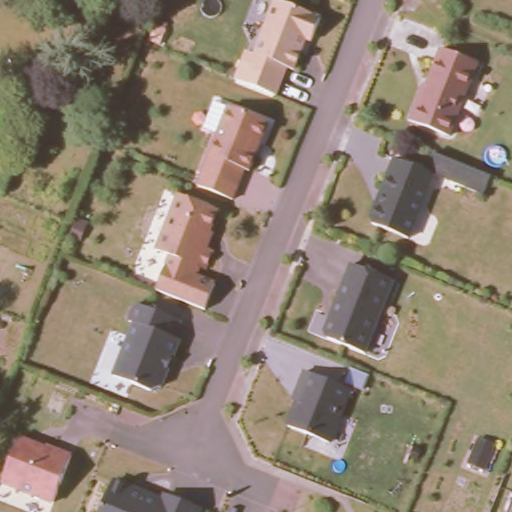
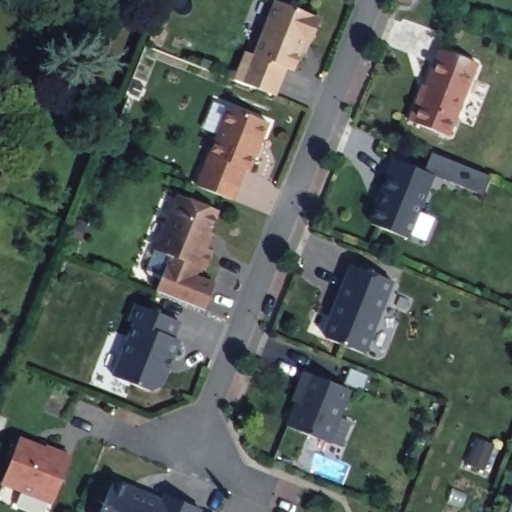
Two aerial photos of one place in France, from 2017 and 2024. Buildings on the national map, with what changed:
unchanged [(233,74),(246,48),(258,52),(278,0),(283,0),(325,15),(314,42),(305,39),(294,70),(285,68),(274,92),(233,74)]
unchanged [(412,117),(442,48),(479,64),(449,132),(412,117)]
unchanged [(196,185),(228,105),(269,122),(251,171),(248,169),(234,199),(196,185)]
unchanged [(414,236),(373,220),(398,156),(437,174),(414,236)]
unchanged [(208,320),(151,297),(173,255),(158,248),(178,194),(221,210),(198,274),(218,282),(208,320)]
unchanged [(351,263),(394,282),(366,356),(323,337),(351,263)]
unchanged [(136,319),(129,316),(135,304),(183,319),(176,335),(184,339),(166,388),(116,372),(136,319)]
unchanged [(333,442),(286,425),(295,401),(291,400),(303,371),(352,390),(333,442)]
unchanged [(26,431),(75,452),(54,503),(3,482),(26,431)]
unchanged [(165,497),(167,491),(203,506),(201,512),(99,512),(113,477),(165,497)]
unchanged [(512,512),(509,512),(512,504),(512,512)]

